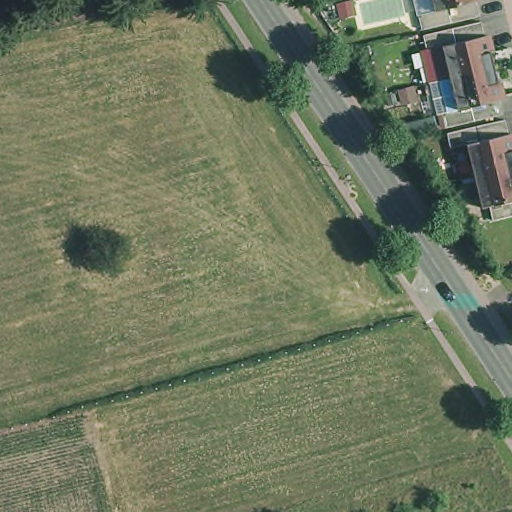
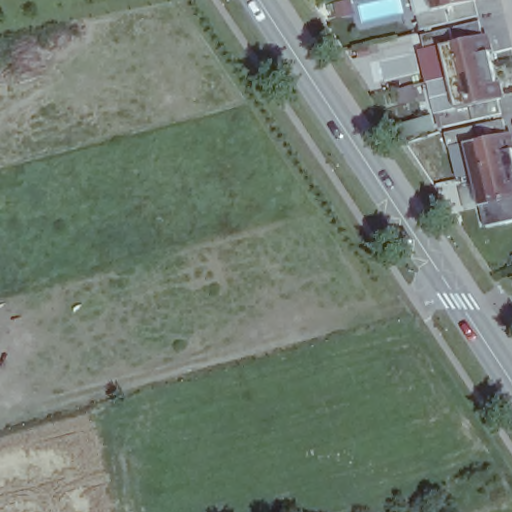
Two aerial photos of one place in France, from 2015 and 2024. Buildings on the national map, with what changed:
unchanged [(418,14),(432,9),(430,0),(480,0),(475,2),(480,16),(422,33),(418,14)]
unchanged [(485,37),(488,35),(503,98),(496,100),(502,115),(445,128),(440,115),(457,111),(441,47),(426,50),(423,37),(483,22),(485,37)]
unchanged [(510,134),(512,133),(512,221),(492,225),(487,207),(480,208),(465,148),(448,152),(445,135),(507,121),(510,134)]

